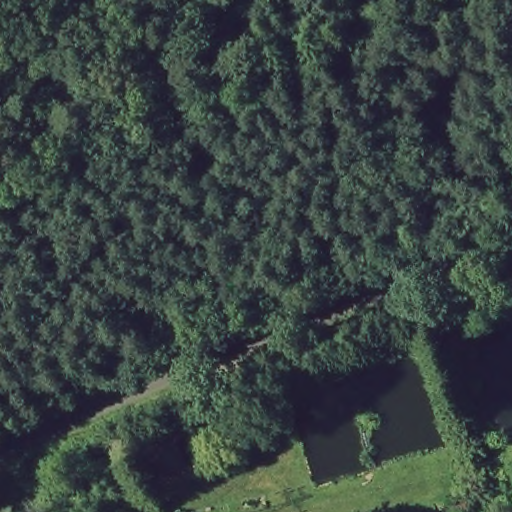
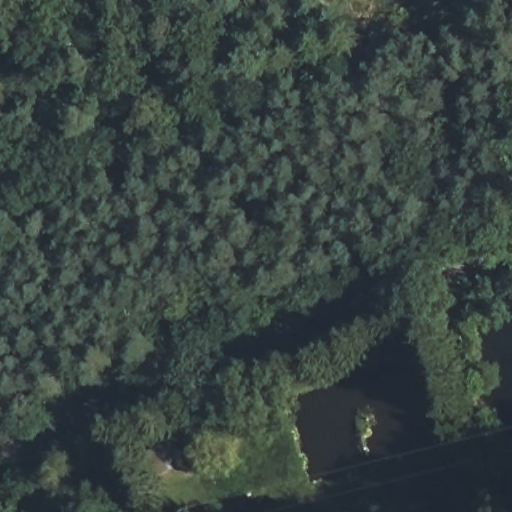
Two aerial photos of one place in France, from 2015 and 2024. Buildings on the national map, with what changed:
unchanged [(193,464),(157,483),(144,453),(180,436),(193,464)]

